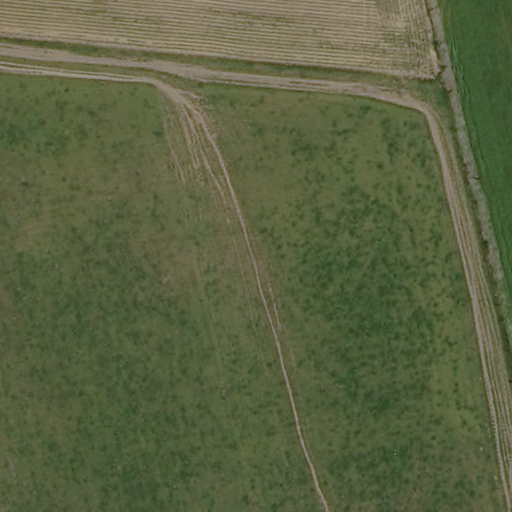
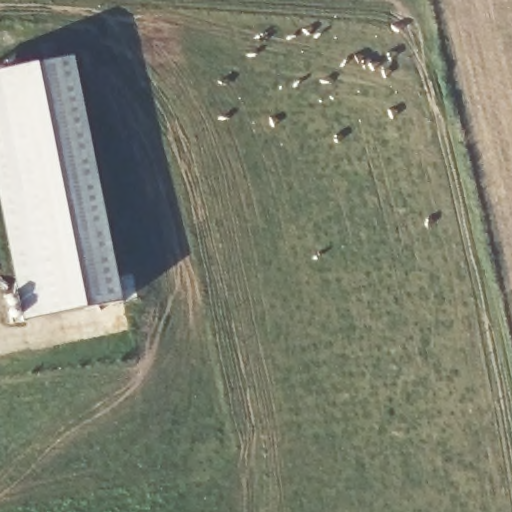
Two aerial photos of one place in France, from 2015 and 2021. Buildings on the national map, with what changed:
new [(8,299),(20,297),(0,195),(0,71),(76,56),(123,302),(26,321),(11,323),(8,299)]

